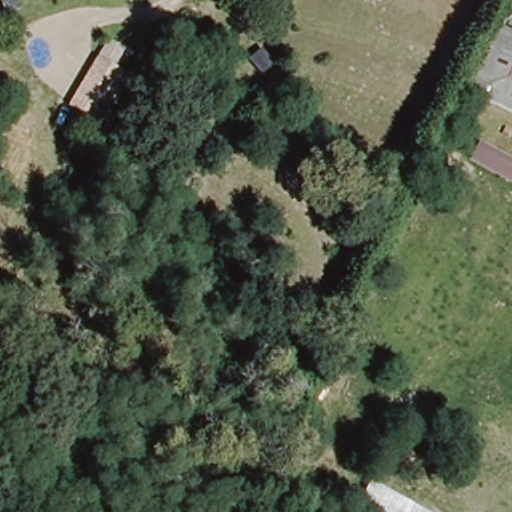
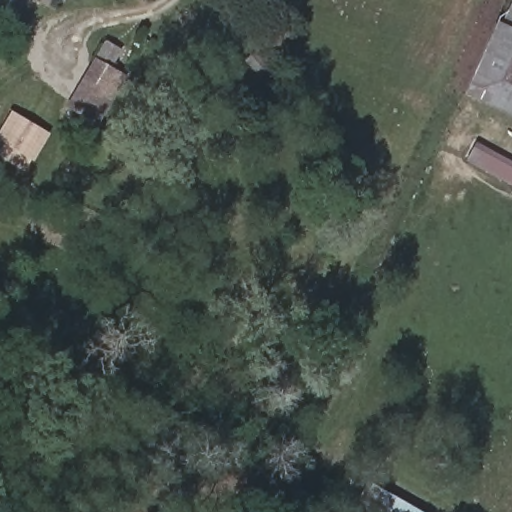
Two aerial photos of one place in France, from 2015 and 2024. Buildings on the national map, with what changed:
unchanged [(474,80),(512,4),(512,100),(474,80)]
unchanged [(123,49),(109,71),(93,62),(106,39),(123,49)]
new [(0,131),(13,110),(49,132),(26,172),(0,157),(0,131)]
new [(373,484),(425,512),(385,512),(364,500),(373,484)]

